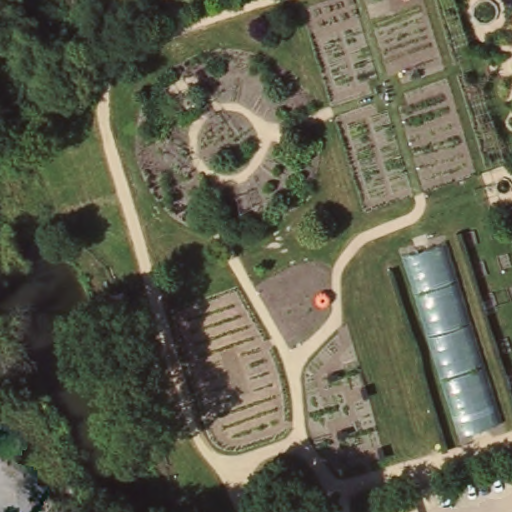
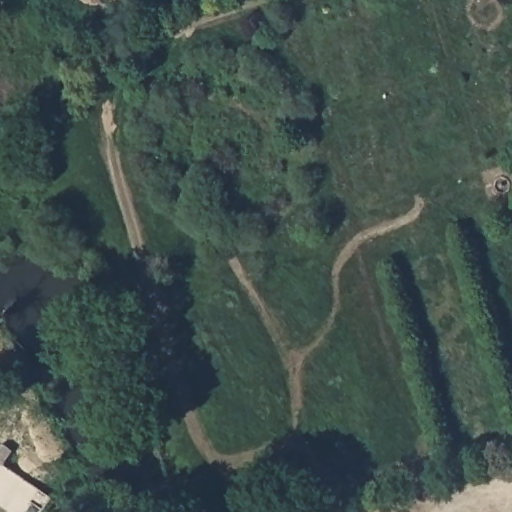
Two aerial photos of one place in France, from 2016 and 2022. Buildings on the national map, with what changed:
demolished [(447,240),(501,422),(459,434),(407,252),(447,240)]
unchanged [(4,462),(0,459),(0,451),(6,443),(15,449),(4,462)]

